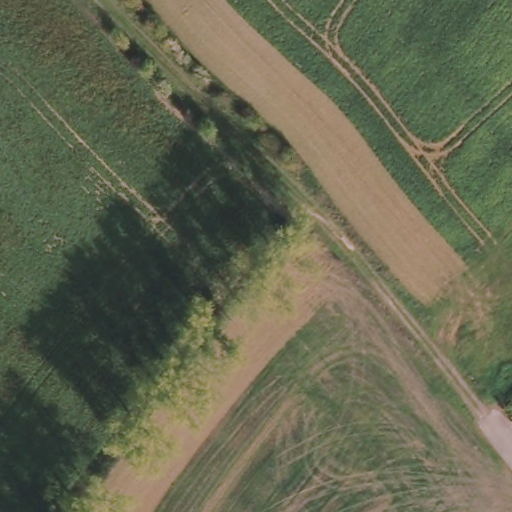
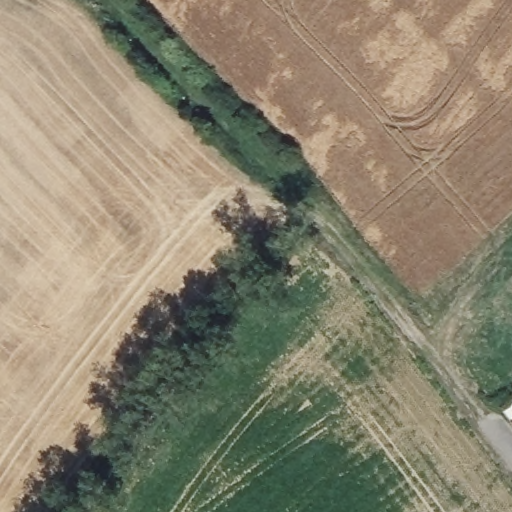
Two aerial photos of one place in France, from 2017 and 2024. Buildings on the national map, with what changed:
[]

